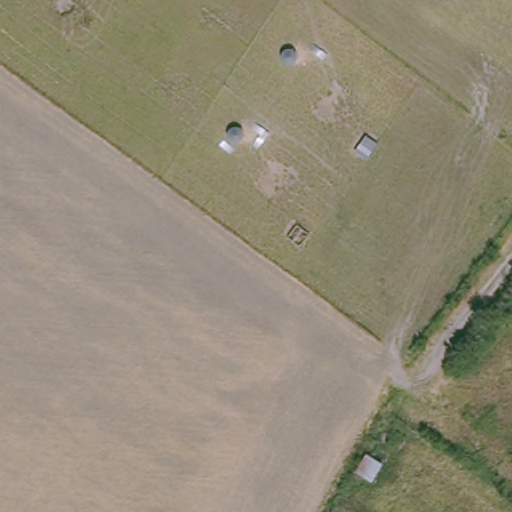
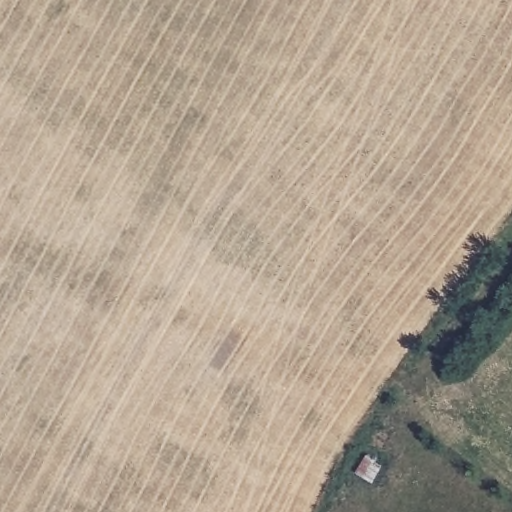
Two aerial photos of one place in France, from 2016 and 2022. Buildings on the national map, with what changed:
unchanged [(381,465),(369,481),(354,470),(365,455),(381,465)]

